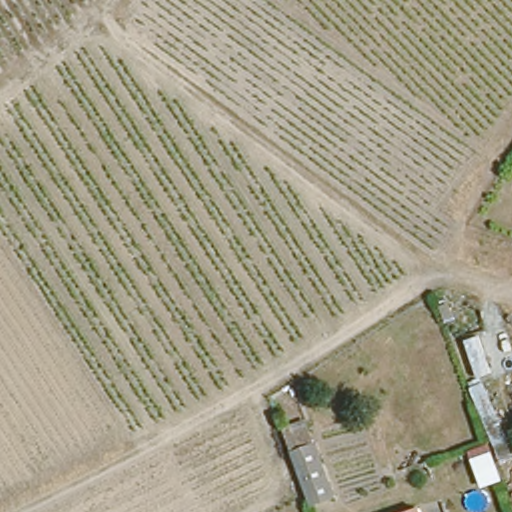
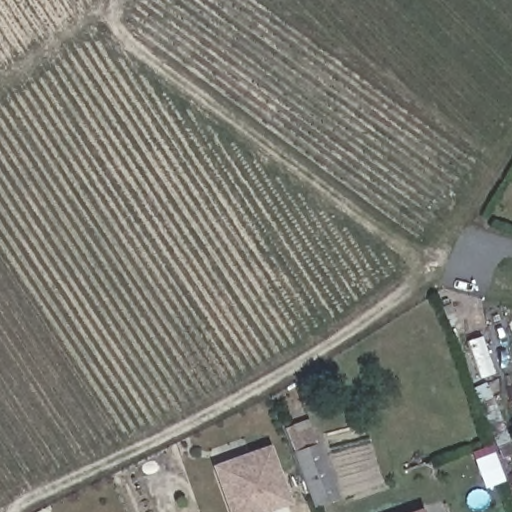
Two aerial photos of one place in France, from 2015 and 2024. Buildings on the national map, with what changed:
new [(467,386),(483,379),(512,445),(512,454),(502,459),(467,386)]
unchanged [(312,504),(289,432),(312,424),(339,494),(312,504)]
new [(268,444),(289,504),(265,512),(226,512),(209,465),(268,444)]
unchanged [(435,473),(409,484),(407,479),(402,467),(404,466),(428,457),(435,473)]
unchanged [(378,509),(379,512),(371,512),(378,509)]

